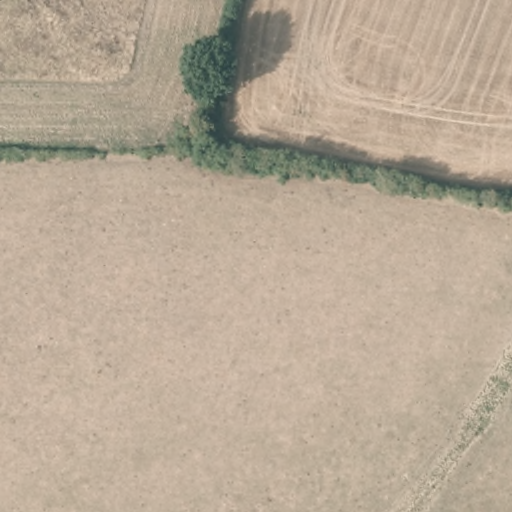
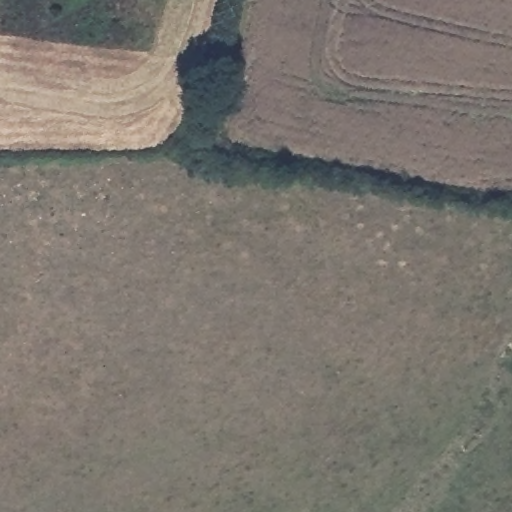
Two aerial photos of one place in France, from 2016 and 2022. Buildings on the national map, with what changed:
[]

